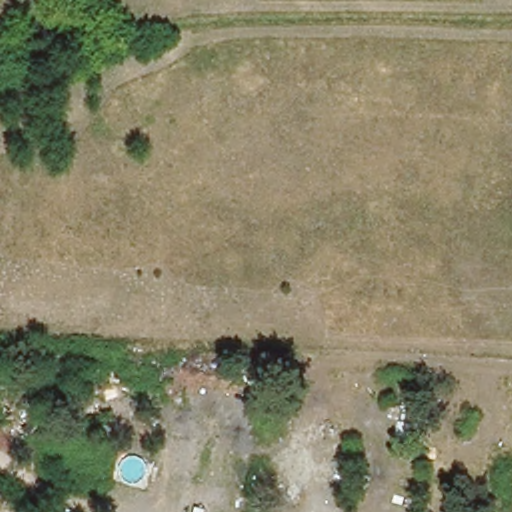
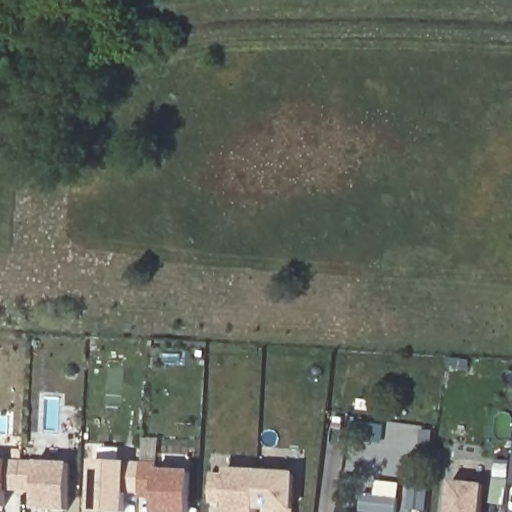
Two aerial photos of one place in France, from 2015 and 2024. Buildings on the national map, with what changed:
new [(19,489),(4,489),(3,506),(0,506),(0,459),(20,460),(19,489)]
new [(20,460),(69,462),(66,509),(33,508),(34,490),(19,489),(20,460)]
new [(93,460),(139,463),(139,490),(123,490),(121,512),(90,510),(93,460)]
new [(506,504),(492,503),(494,477),(510,479),(512,461),(512,484),(509,484),(506,504)]
new [(139,463),(156,464),(155,469),(189,471),(188,512),(153,512),(153,495),(138,495),(139,490),(139,463)]
new [(227,475),(227,470),(259,471),(259,472),(257,507),(257,512),(225,512),(225,502),(210,502),(212,475),(227,475)]
new [(294,474),(293,512),(267,512),(268,508),(257,507),(259,472),(294,474)]
new [(484,483),(481,512),(446,512),(449,480),(484,483)]

